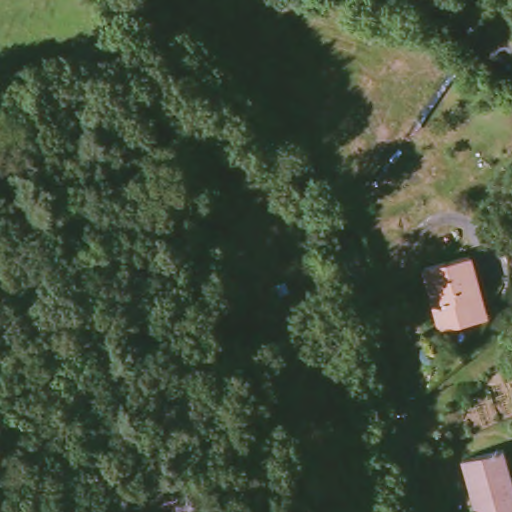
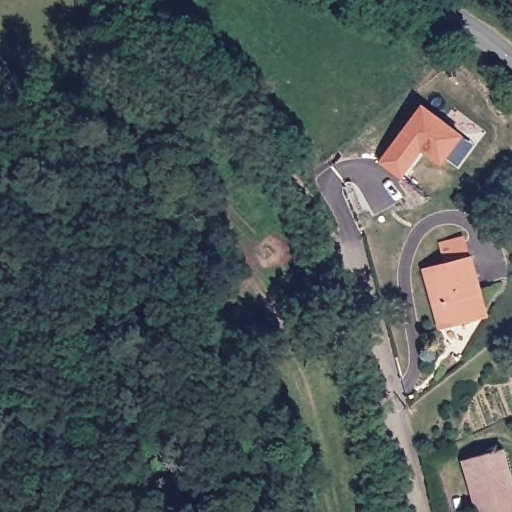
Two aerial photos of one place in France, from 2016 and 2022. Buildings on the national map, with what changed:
new [(442,165),(422,151),(402,178),(380,161),(422,102),(465,134),(442,165)]
unchanged [(425,274),(473,259),(483,296),(472,300),(477,322),(440,332),(425,274)]
unchanged [(460,459),(500,448),(512,489),(512,512),(475,512),(460,459)]

